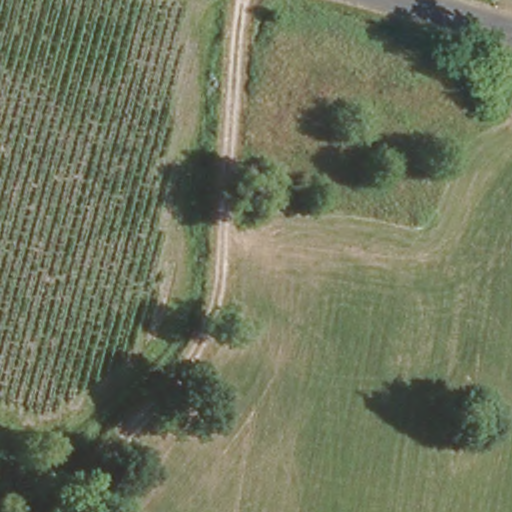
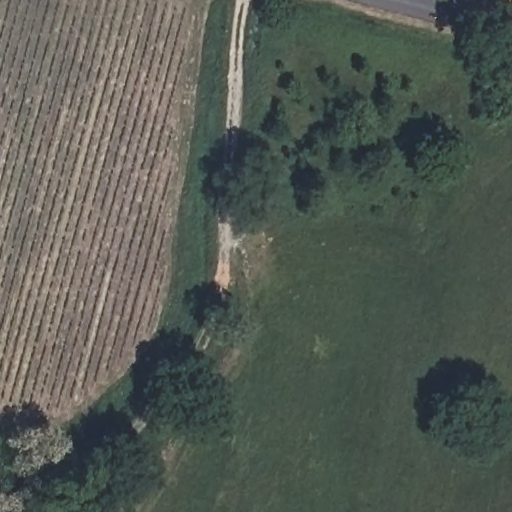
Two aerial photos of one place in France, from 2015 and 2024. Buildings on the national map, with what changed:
unchanged [(508,82),(504,100),(484,94),(489,77),(508,82)]

